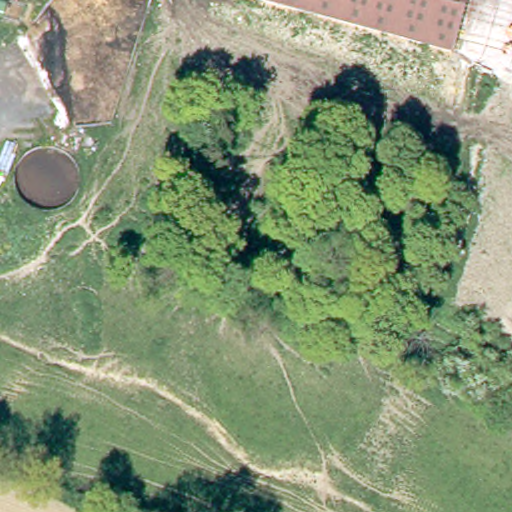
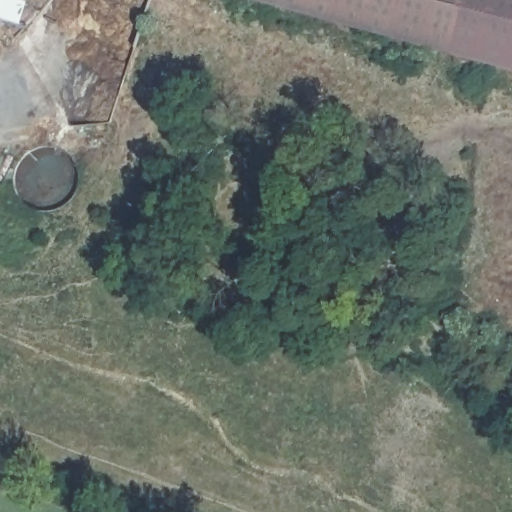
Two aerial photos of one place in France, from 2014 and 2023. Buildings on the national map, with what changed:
unchanged [(254,0),(512,0),(512,70),(254,0)]

